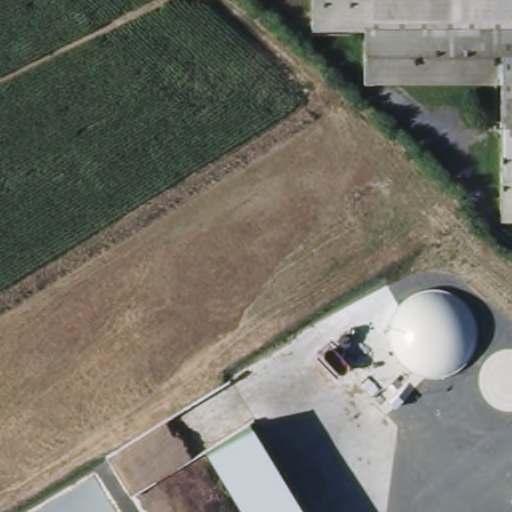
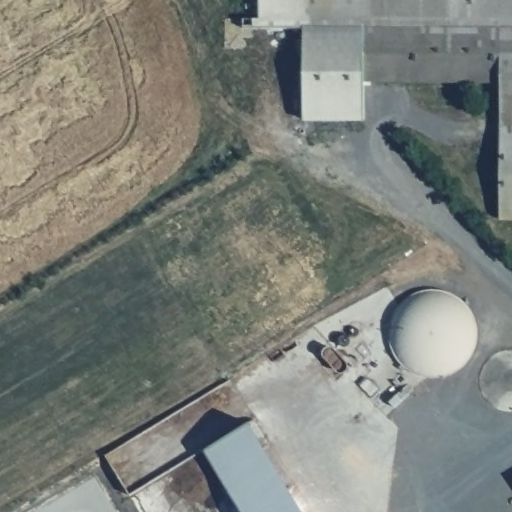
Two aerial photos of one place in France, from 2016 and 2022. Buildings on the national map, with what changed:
new [(304,25),(258,25),(259,0),(320,0),(319,23),(361,23),(364,120),(302,121),(304,25)]
unchanged [(319,23),(320,0),(512,0),(512,213),(500,212),(500,80),(372,78),(372,23),(319,23)]
unchanged [(303,512),(244,512),(208,451),(250,425),(303,512)]

